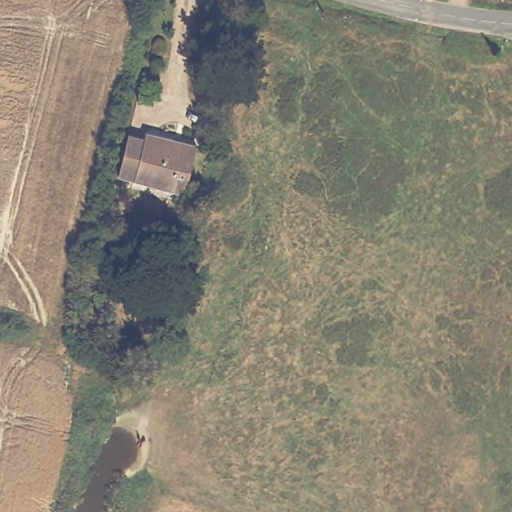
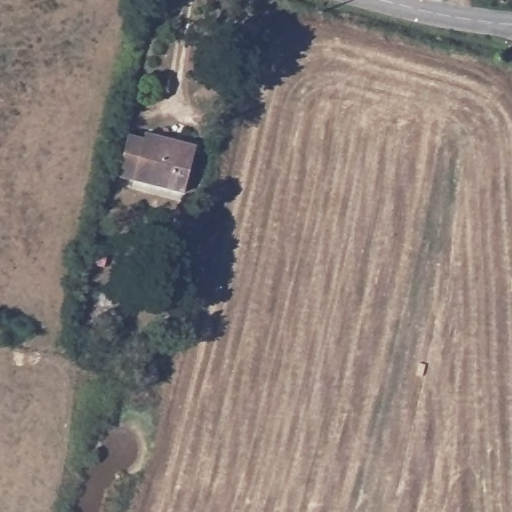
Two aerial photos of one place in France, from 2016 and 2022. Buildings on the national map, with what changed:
unchanged [(146,129),(194,139),(183,187),(120,174),(126,149),(129,132),(145,136),(146,129)]

